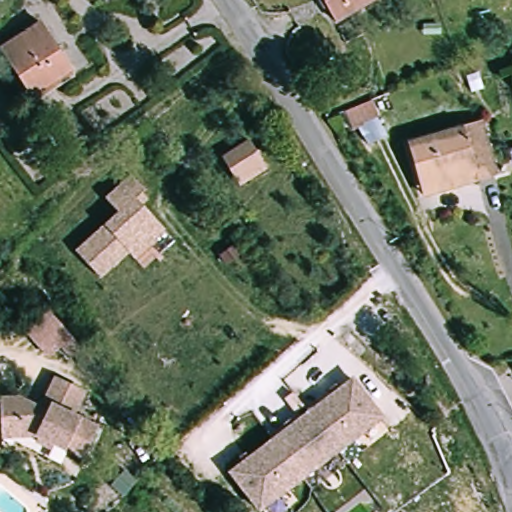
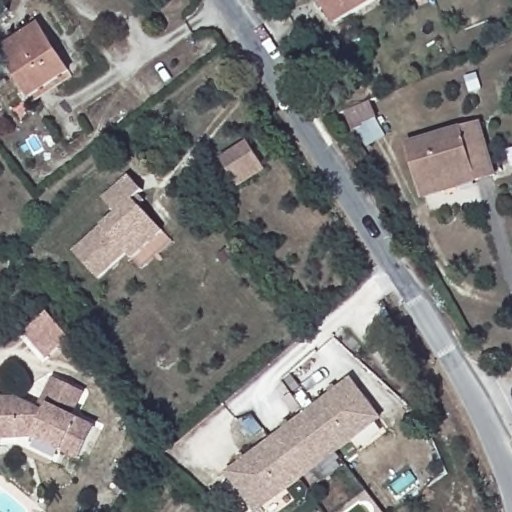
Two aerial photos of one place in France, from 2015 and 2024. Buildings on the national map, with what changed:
unchanged [(318,0),(368,0),(331,23),(318,0)]
unchanged [(1,51),(37,26),(69,73),(33,98),(1,51)]
unchanged [(424,187),(409,146),(480,119),(498,169),(479,179),(429,196),(424,187)]
unchanged [(242,187),(234,181),(221,158),(248,142),(262,166),(266,171),(242,187)]
unchanged [(131,260),(126,253),(94,276),(74,248),(121,214),(109,198),(138,177),(150,194),(139,202),(164,235),(131,260)]
unchanged [(52,347),(39,355),(19,326),(44,309),(72,350),(61,359),(52,347)]
unchanged [(4,400),(21,399),(43,406),(54,376),(83,387),(73,412),(97,421),(84,454),(42,438),(18,439),(3,440),(4,424),(4,400)]
unchanged [(355,380),(384,418),(266,512),(262,512),(233,478),(355,380)]

